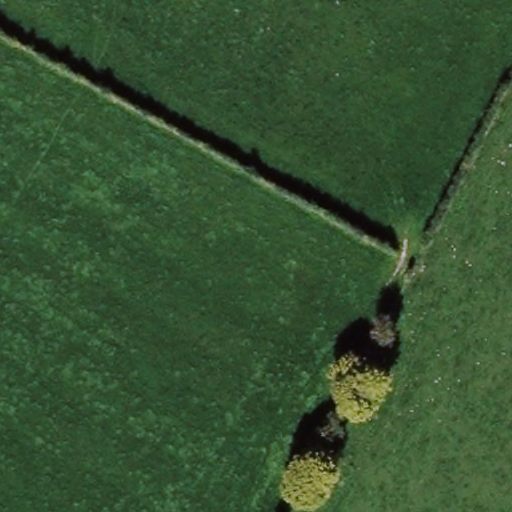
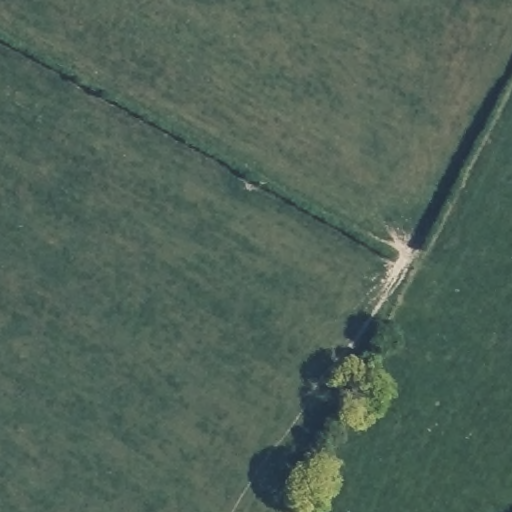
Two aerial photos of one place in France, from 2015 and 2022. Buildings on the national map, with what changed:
[]

